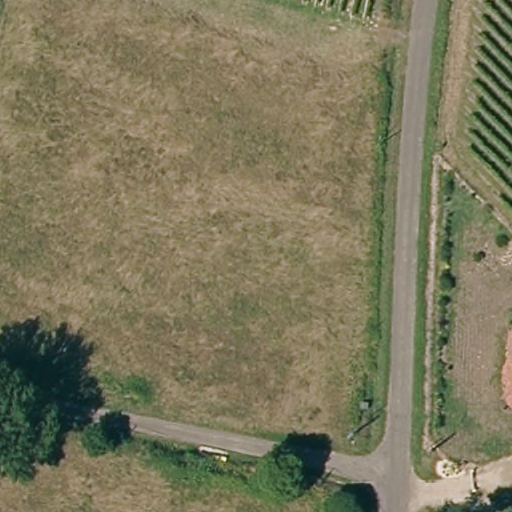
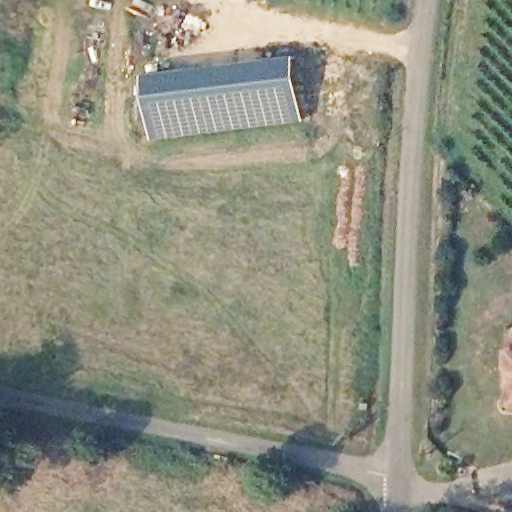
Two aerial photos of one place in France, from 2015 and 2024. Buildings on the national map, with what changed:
new [(316,58),(324,120),(174,138),(165,76),(316,58)]
unchanged [(504,409),(508,329),(512,328),(512,409),(504,409)]

